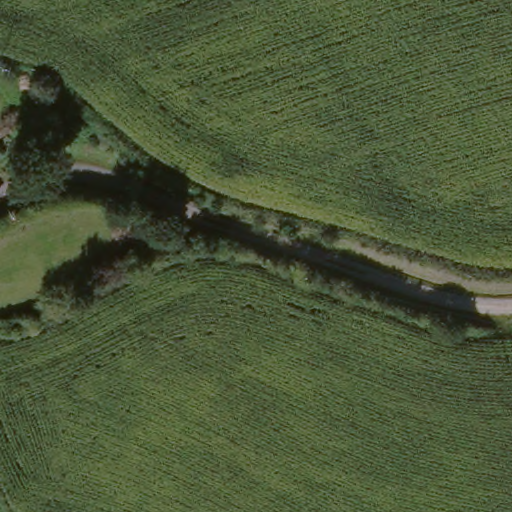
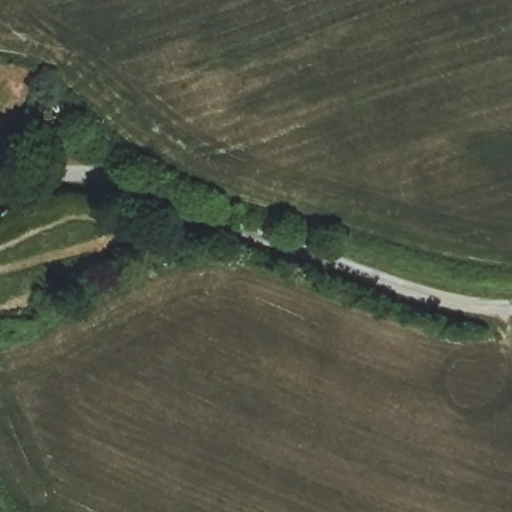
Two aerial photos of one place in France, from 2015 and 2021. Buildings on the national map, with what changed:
[]

